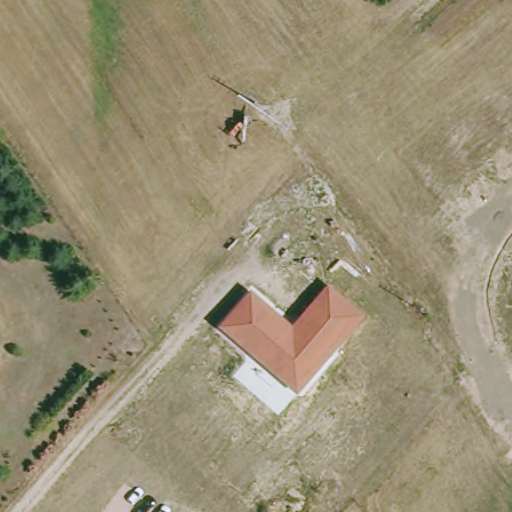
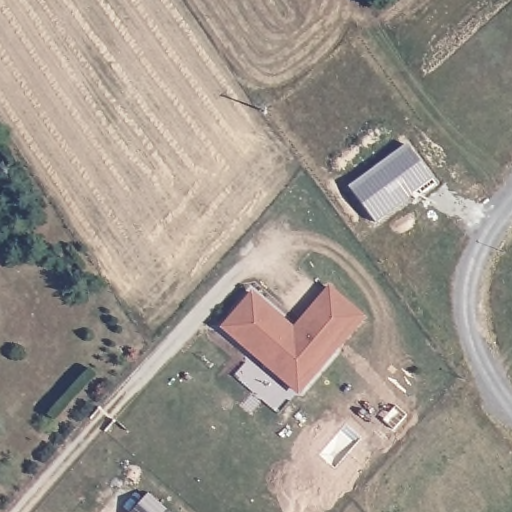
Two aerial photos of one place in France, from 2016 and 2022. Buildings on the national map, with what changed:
new [(413,195),(376,222),(350,187),(408,144),(437,183),(422,194),(416,199),(413,195)]
unchanged [(329,284),(366,315),(299,396),(219,328),(251,291),(294,325),(329,284)]

